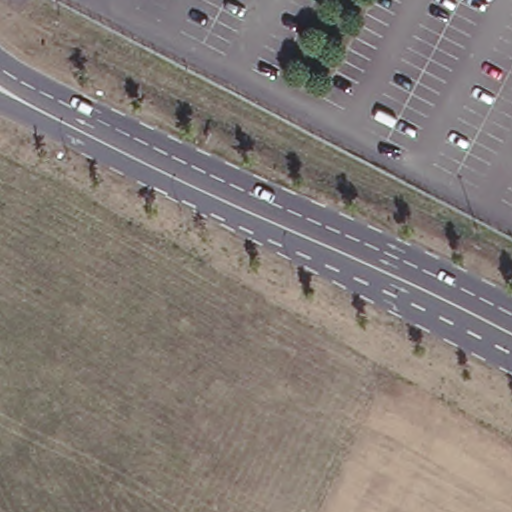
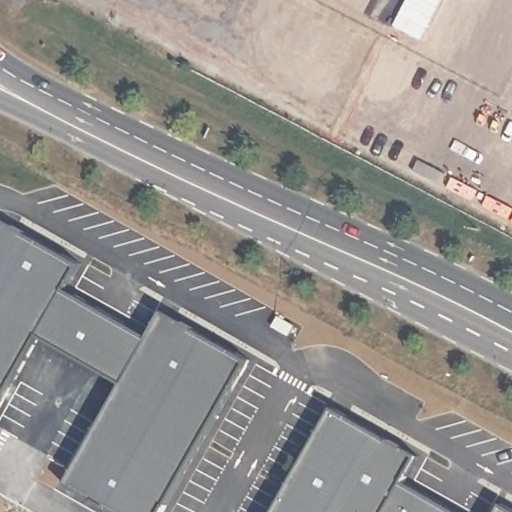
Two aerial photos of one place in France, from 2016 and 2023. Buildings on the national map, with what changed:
new [(57,295),(147,338),(160,314),(243,361),(160,512),(112,512),(66,488),(120,383),(37,343),(0,413),(0,225),(72,262),(57,295)]
new [(396,485),(450,512),(271,512),(328,410),(411,453),(396,485)]
new [(511,512),(496,512),(499,505),(511,512)]

